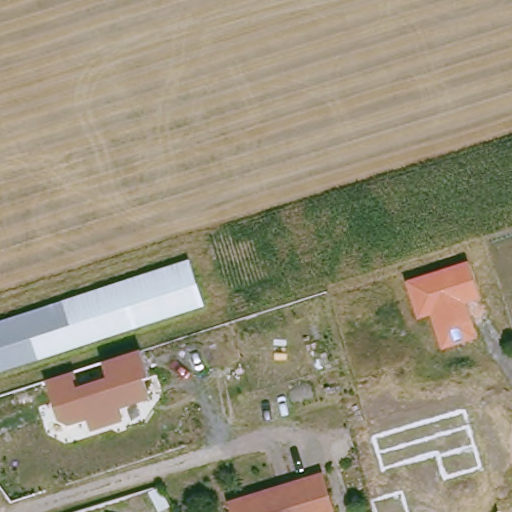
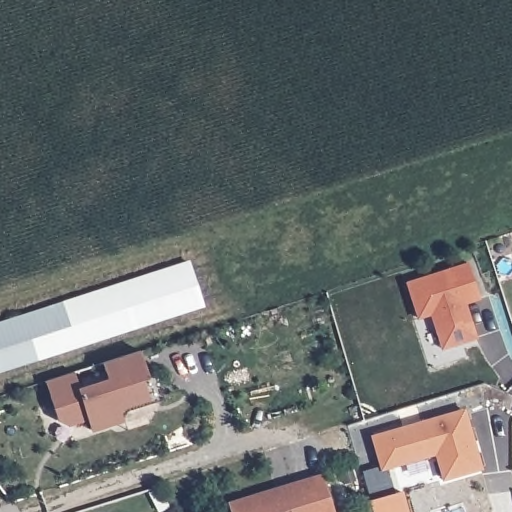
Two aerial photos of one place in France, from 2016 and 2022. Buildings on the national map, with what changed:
unchanged [(468,261),(481,298),(465,304),(477,338),(442,351),(430,316),(416,320),(405,282),(468,261)]
unchanged [(190,264),(203,306),(0,371),(0,324),(190,264)]
unchanged [(93,433),(90,420),(72,427),(60,421),(50,383),(78,373),(83,387),(110,375),(106,364),(142,352),(151,380),(146,381),(153,402),(124,410),(128,422),(93,433)]
new [(436,456),(381,469),(372,437),(465,410),(483,470),(443,480),(436,456)]
unchanged [(323,476),(334,512),(234,512),(232,505),(281,489),(293,486),(323,476)]

